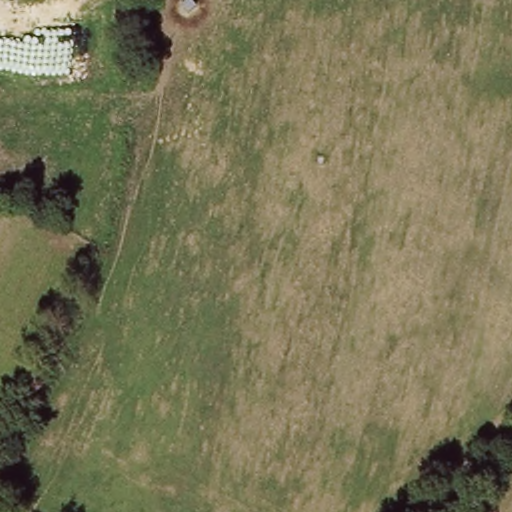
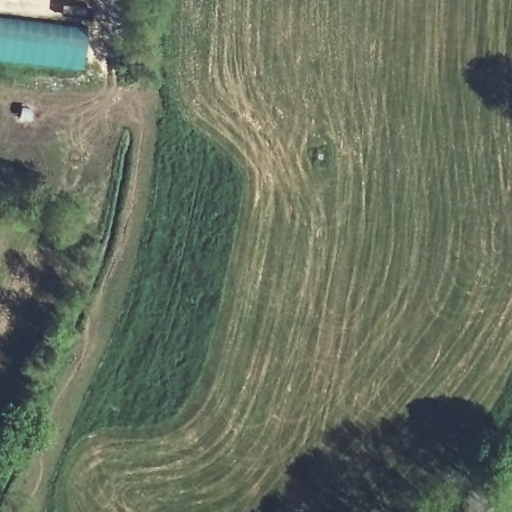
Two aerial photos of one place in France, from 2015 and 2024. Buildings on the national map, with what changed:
new [(80,70),(0,62),(0,16),(86,26),(80,70)]

